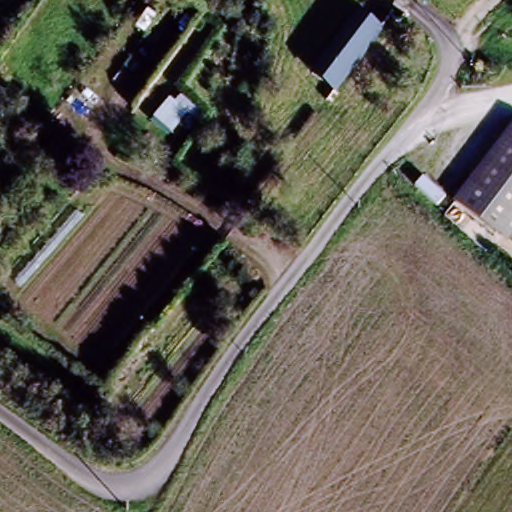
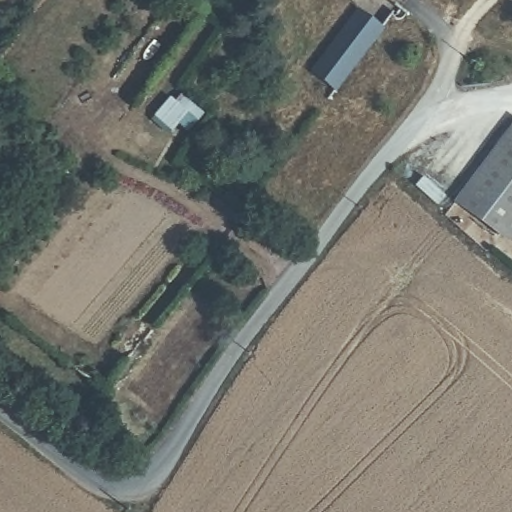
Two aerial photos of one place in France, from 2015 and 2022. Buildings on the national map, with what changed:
unchanged [(335,89),(309,70),(354,13),(379,31),(335,89)]
unchanged [(455,197),(512,134),(512,210),(493,230),(455,197)]
unchanged [(512,210),(512,229),(503,239),(493,230),(512,210)]

